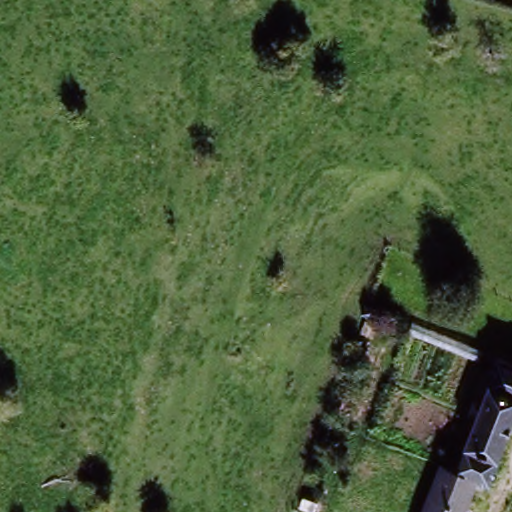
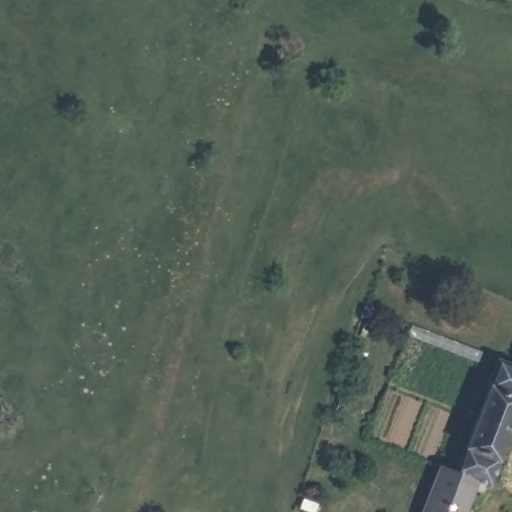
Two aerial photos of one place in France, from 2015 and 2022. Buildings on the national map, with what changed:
unchanged [(373,313),(370,321),(361,317),(364,310),(373,313)]
unchanged [(500,464),(503,465),(492,492),(478,487),(457,478),(467,451),(470,451),(492,392),(493,391),(490,389),(500,365),(512,370),(512,434),(505,453),(500,464)]
unchanged [(457,478),(478,487),(468,512),(428,512),(444,472),(457,478)]

